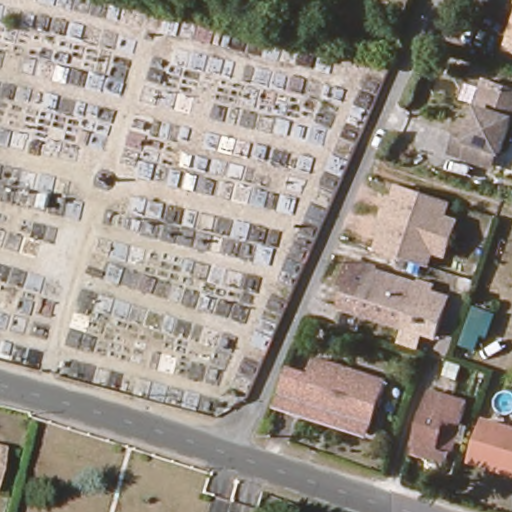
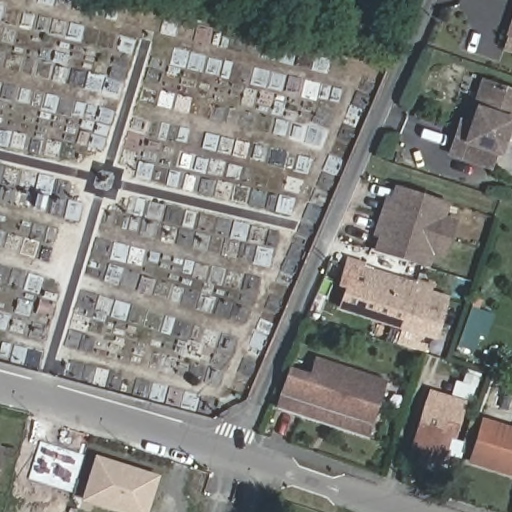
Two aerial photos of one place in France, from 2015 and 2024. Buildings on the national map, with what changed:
unchanged [(205,6),(207,0),(222,0),(220,9),(205,6)]
unchanged [(512,47),(512,52),(511,51),(512,47)]
unchanged [(479,130),(484,114),(482,113),(491,87),(496,89),(512,95),(512,145),(507,160),(503,159),(497,174),(457,160),(462,144),(468,126),(479,130)]
unchanged [(431,247),(425,262),(419,260),(376,247),(398,181),(436,194),(438,194),(442,196),(447,198),(445,203),(441,214),(448,216),(452,217),(449,224),(446,233),(441,250),(431,247)]
unchanged [(416,296),(404,332),(343,312),(350,290),(343,288),(351,266),(376,274),(376,276),(418,290),(416,294),(416,296)]
unchanged [(437,342),(404,332),(416,296),(449,306),(437,342)]
unchanged [(297,415),(274,408),(288,370),(309,377),(315,359),(383,382),(367,429),(364,438),(297,415)]
unchanged [(433,451),(446,455),(443,465),(408,454),(420,412),(428,392),(462,402),(456,424),(442,420),(433,451)]
unchanged [(467,463),(480,421),(512,430),(512,477),(467,463)]
unchanged [(0,452),(4,453),(0,472),(0,452)]
new [(100,459),(119,466),(119,468),(125,470),(126,468),(159,478),(149,512),(125,512),(88,500),(100,459)]

